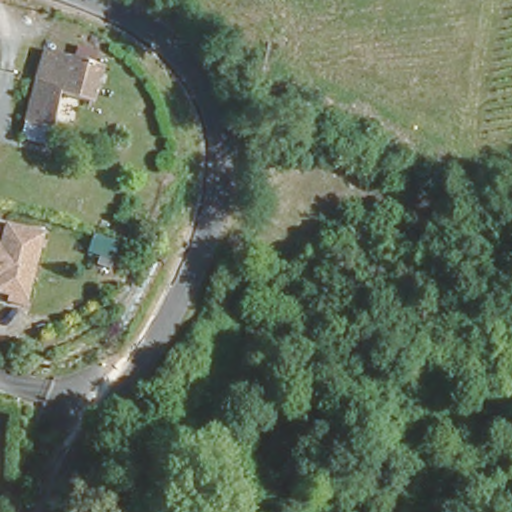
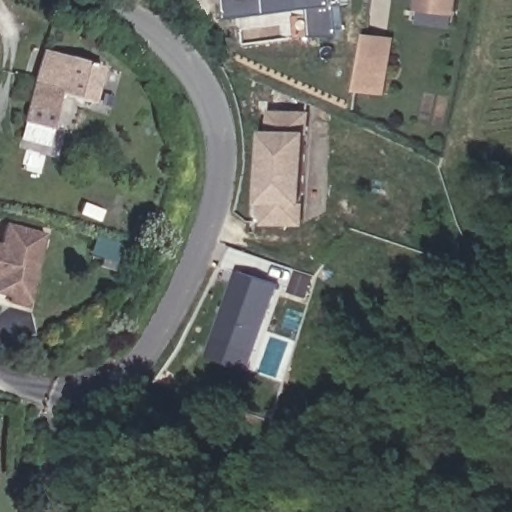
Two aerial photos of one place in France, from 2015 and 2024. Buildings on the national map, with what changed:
new [(339,10),(340,37),(310,39),(308,8),(225,13),(224,0),(348,0),(347,10),(339,10)]
new [(418,10),(419,0),(463,0),(461,15),(457,15),(455,28),(421,24),(422,10),(418,10)]
new [(389,95),(360,91),(366,34),(396,37),(389,95)]
unchanged [(43,131),(20,126),(33,74),(40,45),(65,52),(101,62),(90,104),(54,95),(43,131)]
new [(309,132),(307,203),(306,224),(263,223),(263,203),(263,129),(267,111),(309,112),(309,132)]
unchanged [(14,310),(0,306),(0,228),(35,237),(14,310)]
new [(237,271),(282,287),(262,350),(258,349),(252,371),(208,357),(237,271)]

